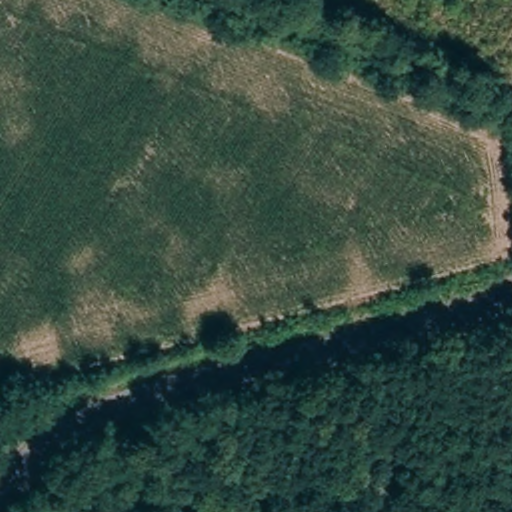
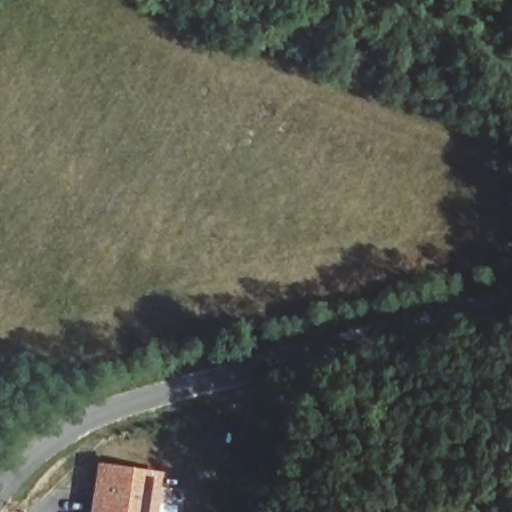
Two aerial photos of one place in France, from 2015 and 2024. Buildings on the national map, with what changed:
new [(162,476),(157,512),(94,512),(100,467),(162,476)]

